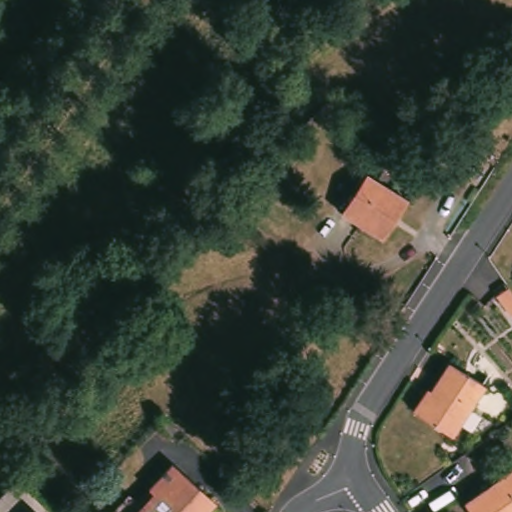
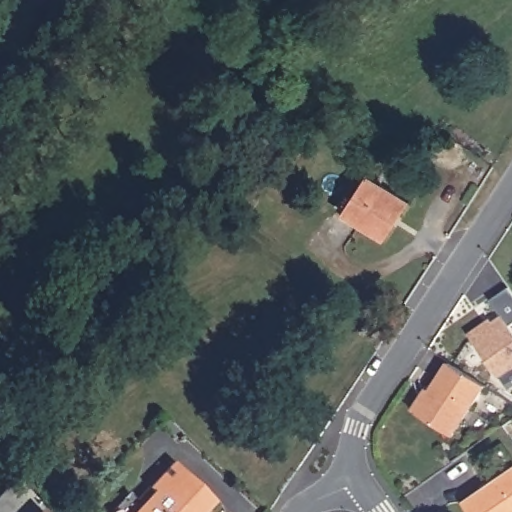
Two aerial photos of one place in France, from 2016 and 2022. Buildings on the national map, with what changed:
unchanged [(412,199),(387,240),(345,215),(367,172),(412,199)]
new [(490,319),(492,323),(502,316),(491,301),(510,288),(512,291),(512,321),(508,324),(512,329),(512,367),(497,377),(468,334),(490,319)]
unchanged [(484,384),(451,436),(415,412),(448,362),(484,384)]
unchanged [(222,504),(214,512),(117,512),(136,493),(144,500),(154,491),(179,464),(222,504)]
unchanged [(462,506),(512,470),(512,512),(467,512),(462,506)]

